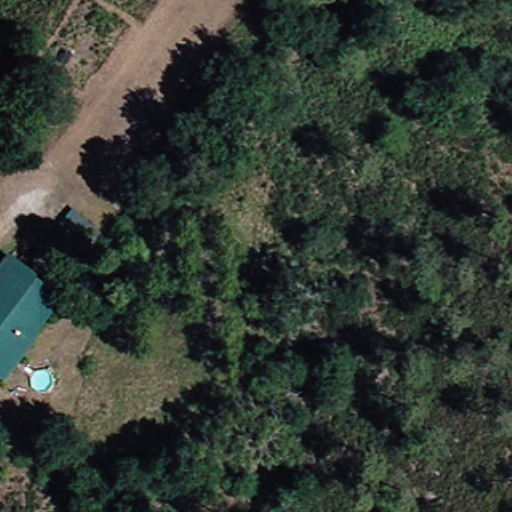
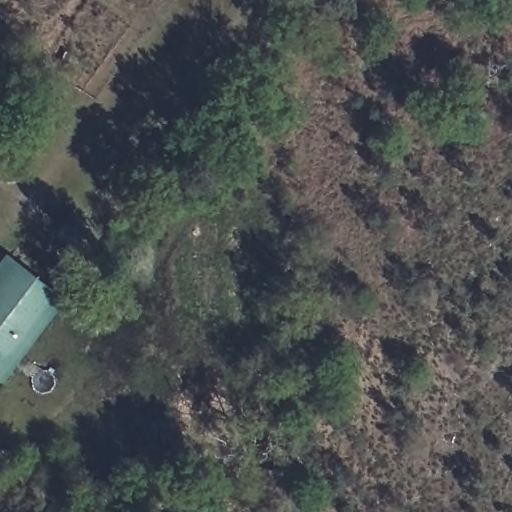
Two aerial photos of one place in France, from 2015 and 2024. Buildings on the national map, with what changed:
unchanged [(0,372),(0,255),(58,295),(0,372)]

